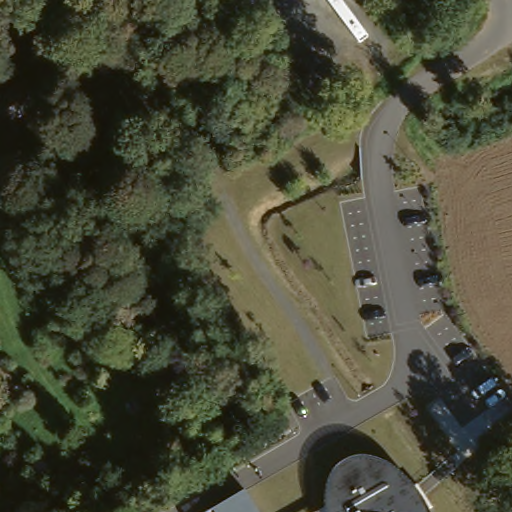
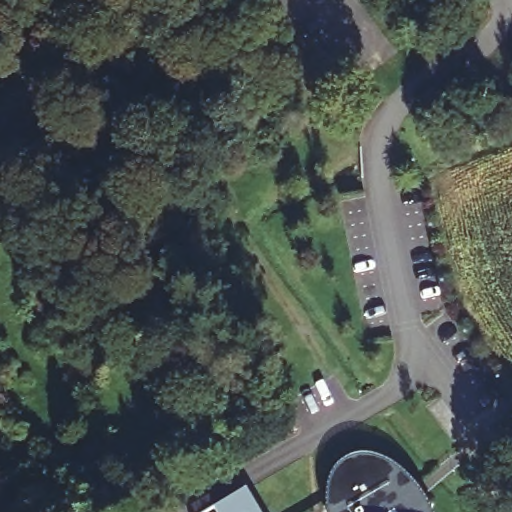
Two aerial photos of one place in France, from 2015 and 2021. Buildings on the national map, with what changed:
unchanged [(0,97),(29,75),(41,91),(0,123),(0,97)]
unchanged [(326,493),(330,478),(336,468),(344,461),(353,457),(364,456),(379,460),(396,467),(413,482),(428,505),(431,512),(326,512),(326,511),(326,493)]
unchanged [(260,512),(207,512),(246,489),(260,512)]

